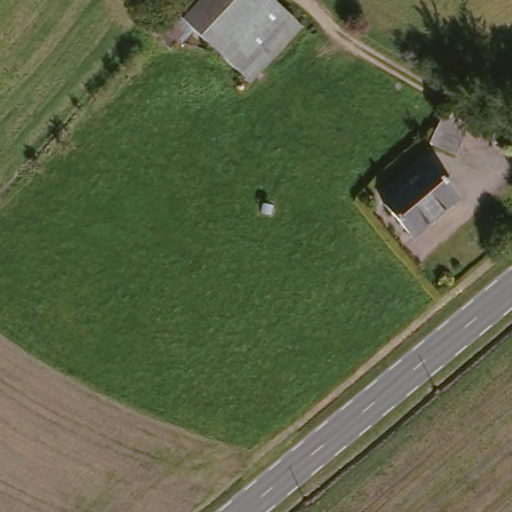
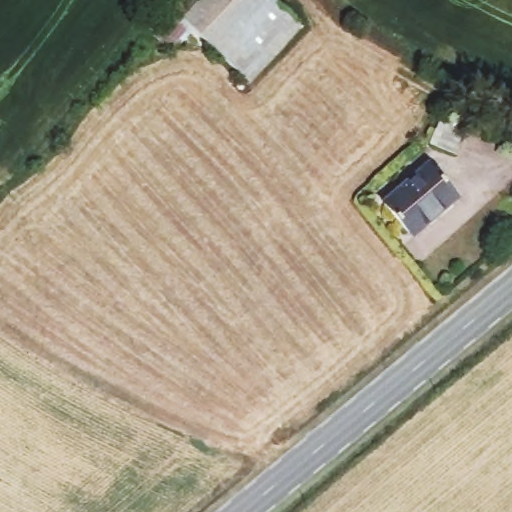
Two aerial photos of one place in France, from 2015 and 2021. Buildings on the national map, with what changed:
unchanged [(298,19),(249,77),(174,11),(183,0),(275,0),(298,19)]
unchanged [(466,127),(453,152),(427,138),(439,113),(466,127)]
unchanged [(455,200),(413,236),(383,200),(425,165),(455,200)]

